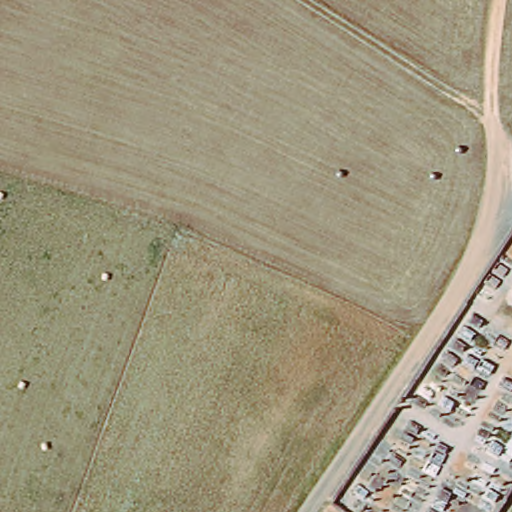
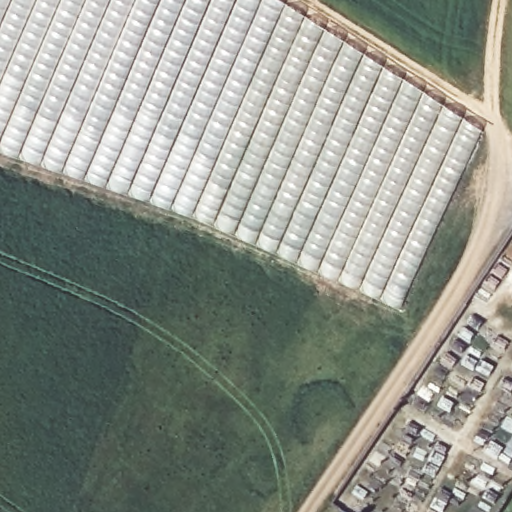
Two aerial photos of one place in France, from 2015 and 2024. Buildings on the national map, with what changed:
new [(278,0),(482,130),(443,210),(399,308),(378,299),(358,290),(337,280),(202,222),(147,202),(105,187),(0,152),(0,0),(278,0)]

